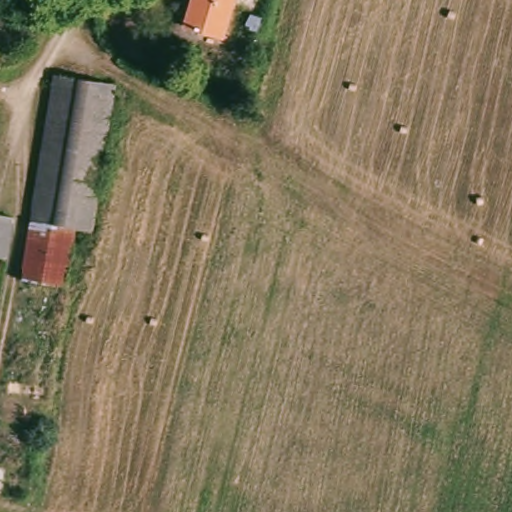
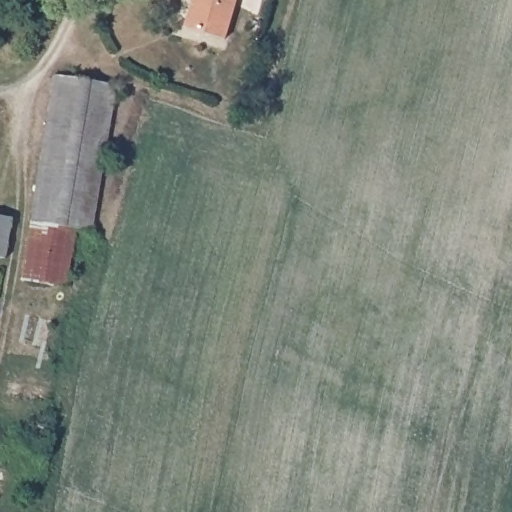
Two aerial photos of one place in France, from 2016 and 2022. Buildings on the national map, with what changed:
unchanged [(196,30),(203,0),(241,0),(231,37),(196,30)]
unchanged [(62,74),(122,85),(100,230),(81,225),(36,215),(56,111),(62,74)]
unchanged [(8,258),(0,257),(0,215),(15,217),(8,258)]
unchanged [(81,225),(66,312),(20,303),(36,215),(81,225)]

